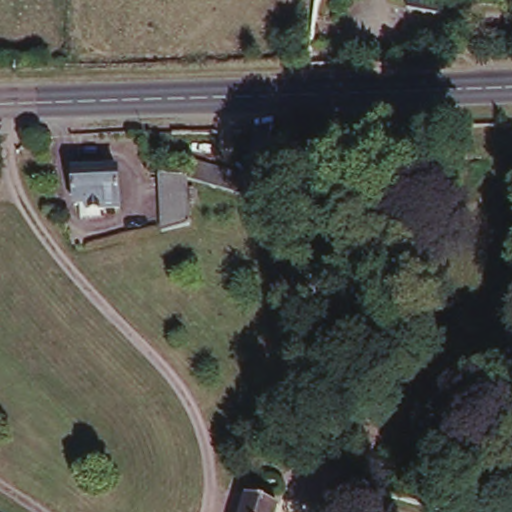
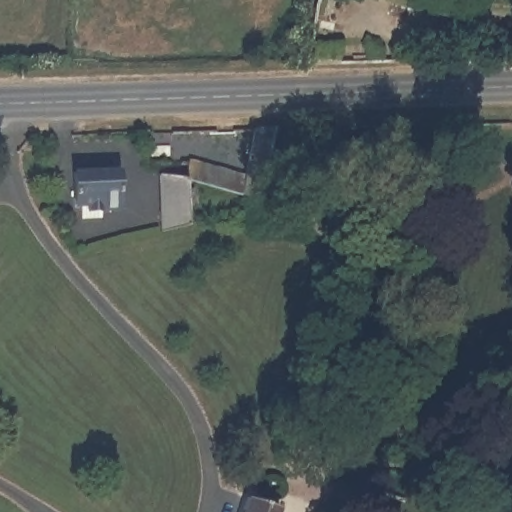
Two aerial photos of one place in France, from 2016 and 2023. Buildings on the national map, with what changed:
unchanged [(411,6),(412,0),(472,0),(472,17),(411,6)]
unchanged [(242,174),(255,130),(291,130),(272,204),(191,180),(184,178),(187,165),(190,165),(190,159),(242,174)]
unchanged [(119,166),(120,203),(101,205),(101,215),(82,215),(81,200),(76,200),(75,166),(119,166)]
unchanged [(164,227),(162,171),(184,178),(191,180),(191,226),(177,227),(164,227)]
unchanged [(301,434),(295,453),(281,449),(286,430),(301,434)]
unchanged [(483,495),(512,503),(512,506),(510,512),(482,512),(479,511),(483,495)]
unchanged [(281,506),(280,512),(245,512),(249,497),(281,506)]

